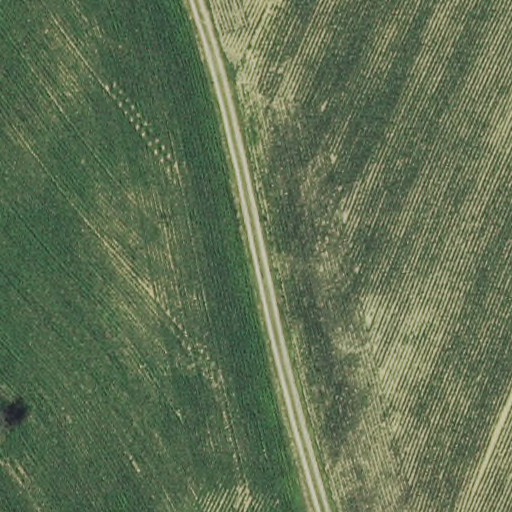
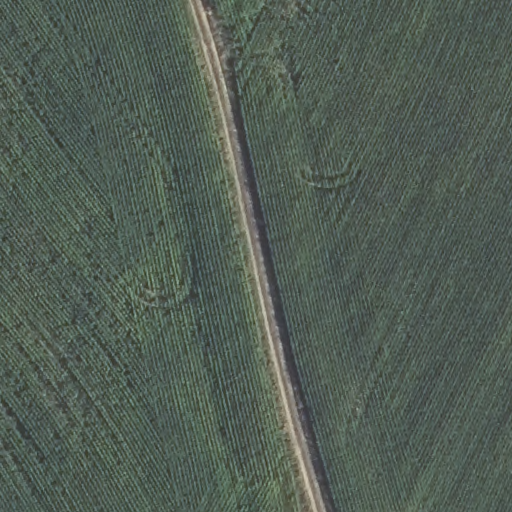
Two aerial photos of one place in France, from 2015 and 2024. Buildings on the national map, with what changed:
[]

